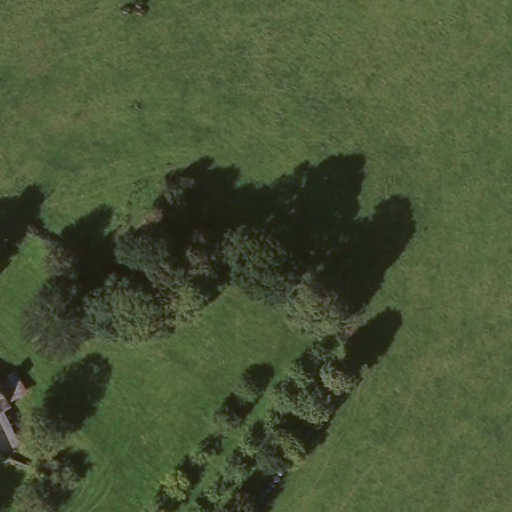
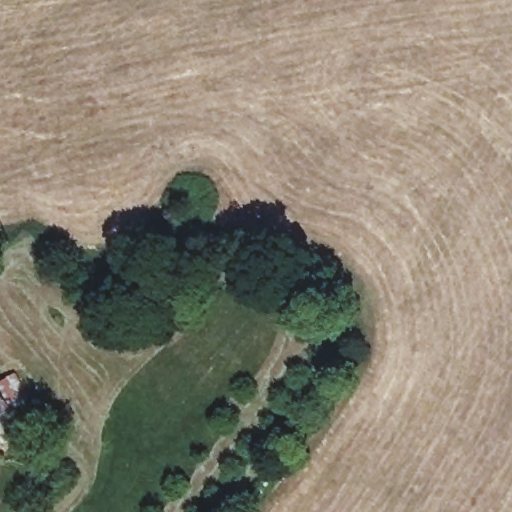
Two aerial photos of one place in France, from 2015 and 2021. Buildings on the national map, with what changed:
unchanged [(18,448),(13,443),(6,434),(0,427),(0,377),(8,371),(29,400),(14,411),(23,423),(32,438),(18,448)]

